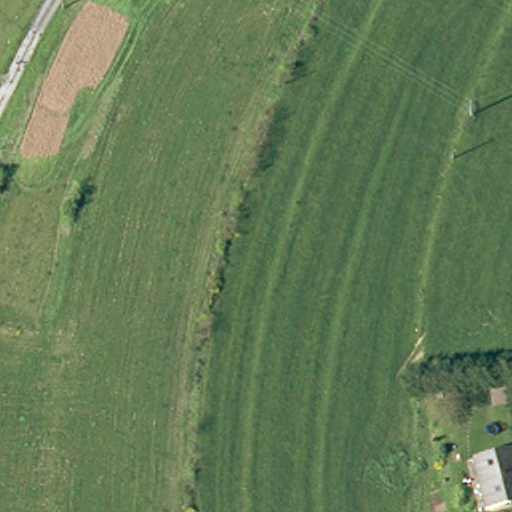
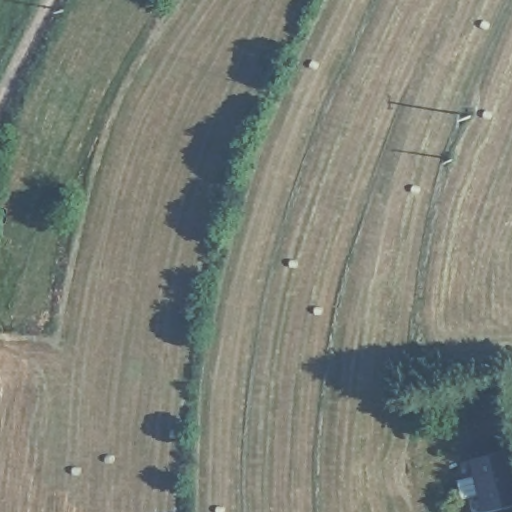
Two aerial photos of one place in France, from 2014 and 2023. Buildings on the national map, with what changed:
unchanged [(479,465),(512,459),(512,507),(487,512),(479,465)]

